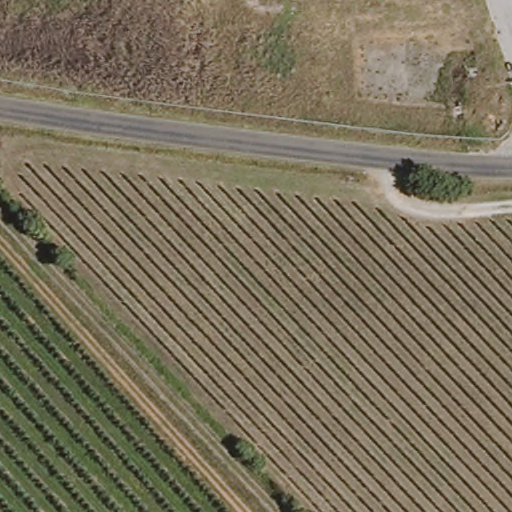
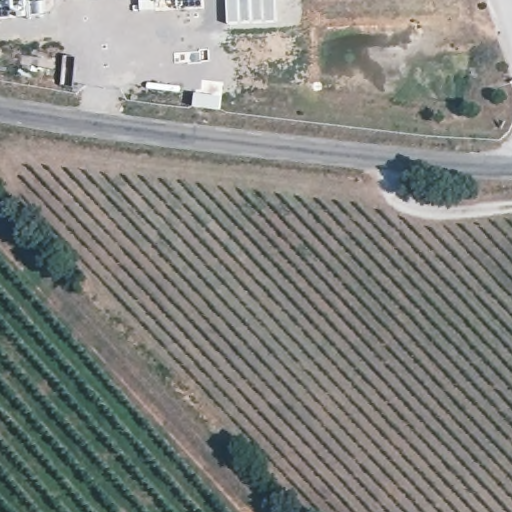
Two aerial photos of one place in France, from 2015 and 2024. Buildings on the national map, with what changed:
new [(0,0),(13,0),(0,1),(0,0)]
new [(275,0),(275,21),(228,25),(227,0),(275,0)]

